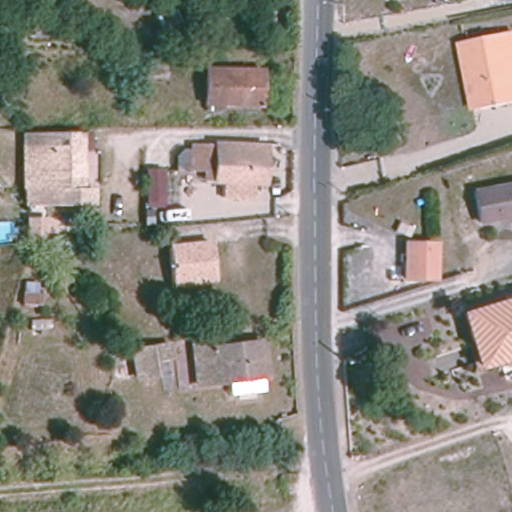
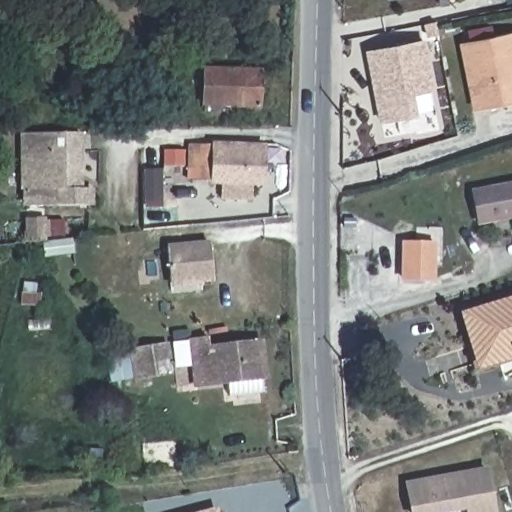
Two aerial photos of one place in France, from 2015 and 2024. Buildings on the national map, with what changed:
unchanged [(470,41),(508,33),(512,32),(512,105),(485,110),(478,112),(463,42),(470,41)]
new [(436,90),(430,91),(433,110),(379,122),(365,50),(426,39),(436,90)]
unchanged [(137,65),(171,65),(171,80),(137,80),(137,65)]
unchanged [(207,70),(260,72),(258,105),(206,102),(207,70)]
unchanged [(23,133),(82,134),(82,189),(94,189),(94,203),(52,203),(53,189),(23,189),(23,133)]
unchanged [(266,185),(218,182),(211,181),(211,174),(207,174),(208,152),(211,153),(212,144),(220,144),(269,146),(266,185)]
unchanged [(512,185),(512,216),(474,224),(468,194),(512,185)]
unchanged [(344,198),(355,198),(355,200),(355,211),(344,212),(344,198)]
unchanged [(0,246),(0,235),(4,235),(6,245),(0,246)]
unchanged [(167,250),(211,246),(214,282),(171,286),(167,250)]
unchanged [(432,280),(404,278),(405,247),(433,249),(432,280)]
unchanged [(512,357),(479,367),(462,316),(512,300),(512,357)]
unchanged [(199,342),(258,336),(264,389),(230,392),(229,378),(185,382),(183,363),(179,338),(185,337),(197,336),(199,342)]
unchanged [(173,358),(155,361),(158,377),(139,380),(134,350),(171,344),(173,358)]
new [(497,512),(468,512),(468,510),(458,512),(412,512),(407,482),(489,466),(497,512)]
new [(221,512),(201,512),(220,507),(221,512)]

